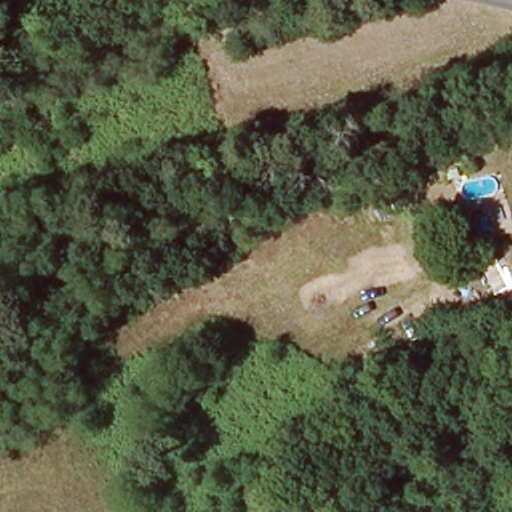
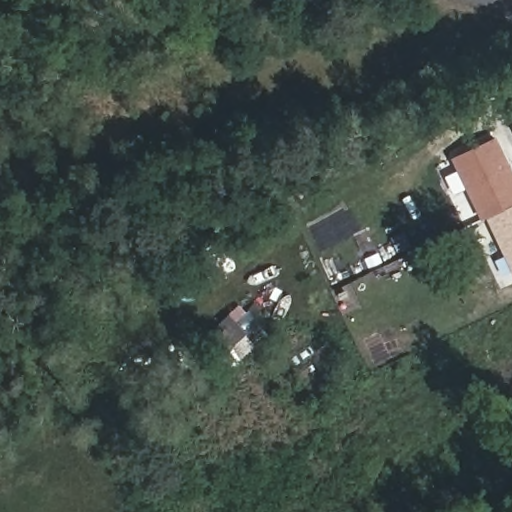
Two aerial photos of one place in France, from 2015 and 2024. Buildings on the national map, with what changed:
new [(494,137),(512,172),(512,271),(488,217),(481,220),(452,158),(494,137)]
unchanged [(512,265),(512,270),(510,266),(512,265)]

